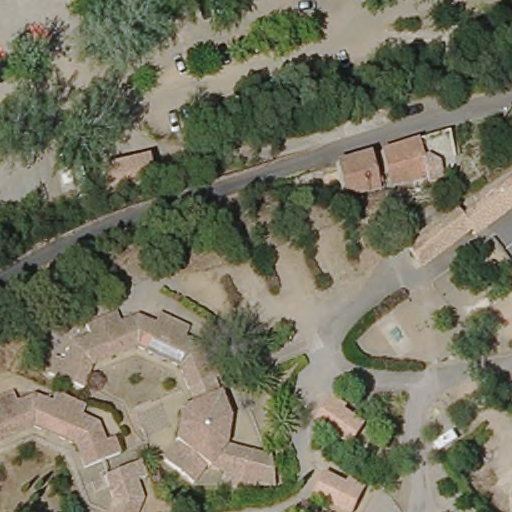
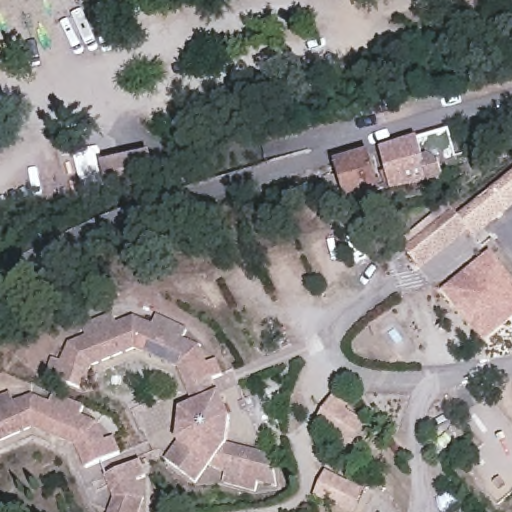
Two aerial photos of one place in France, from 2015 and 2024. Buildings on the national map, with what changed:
unchanged [(390,187),(380,149),(448,129),(455,154),(458,168),(433,174),(435,179),(425,182),(423,177),(390,187)]
unchanged [(345,199),(335,162),(371,151),(380,190),(345,199)]
unchanged [(97,168),(151,153),(160,182),(105,196),(97,168)]
unchanged [(463,231),(413,269),(401,255),(451,216),(455,220),(512,174),(512,200),(467,236),(463,231)]
new [(490,254),(512,280),(512,321),(485,343),(443,291),(490,254)]
unchanged [(68,344),(84,328),(98,323),(115,317),(137,318),(158,319),(171,326),(175,327),(183,337),(186,332),(201,347),(214,360),(206,366),(217,379),(187,390),(177,368),(155,359),(133,350),(111,358),(90,366),(80,388),(46,374),(53,358),(68,344)]
unchanged [(13,390),(31,390),(55,390),(69,396),(84,402),(98,417),(115,433),(120,446),(85,461),(75,438),(52,430),(33,423),(10,431),(0,434),(0,394),(13,390)]
unchanged [(250,490),(235,485),(220,480),(206,470),(203,469),(192,482),(165,460),(179,443),(176,439),(182,408),(217,395),(225,417),(225,445),(245,451),(260,455),(265,456),(270,479),(272,487),(250,490)]
unchanged [(333,396),(350,407),(346,414),(365,427),(353,447),(316,421),(333,396)]
unchanged [(137,455),(143,470),(143,493),(143,512),(104,512),(106,505),(112,493),(101,470),(137,455)]
unchanged [(347,483),(350,479),(367,487),(355,512),(340,512),(315,500),(327,475),(347,483)]

